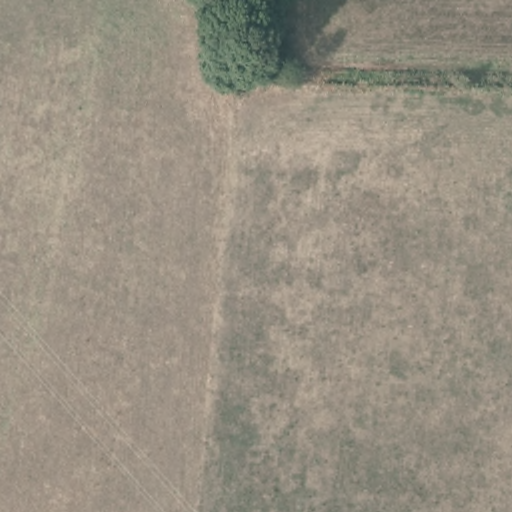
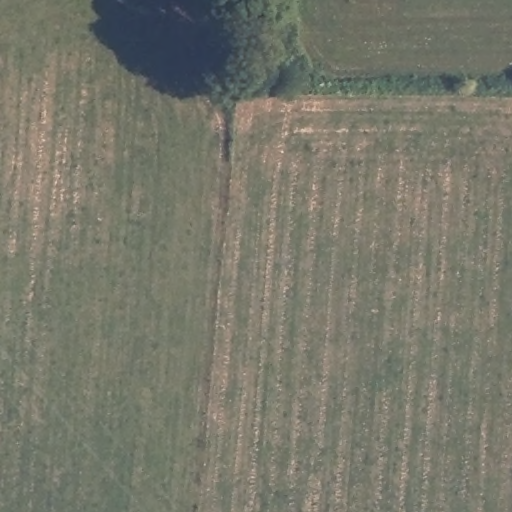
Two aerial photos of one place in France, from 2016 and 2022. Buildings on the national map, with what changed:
[]

